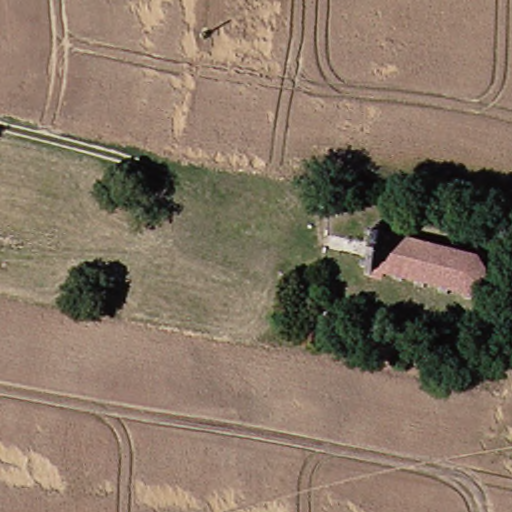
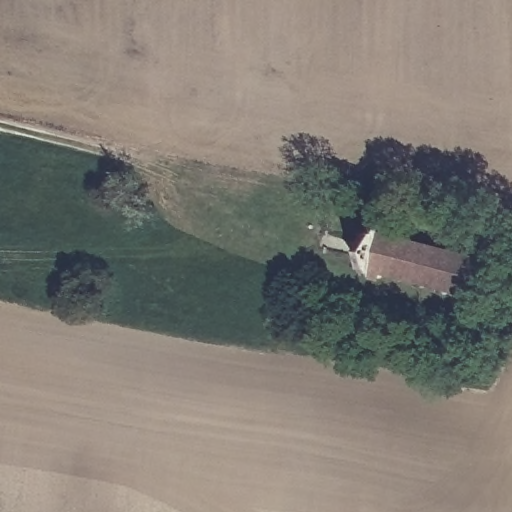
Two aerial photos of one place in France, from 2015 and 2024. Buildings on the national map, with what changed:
unchanged [(483,258),(472,299),(365,269),(376,226),(483,258)]

